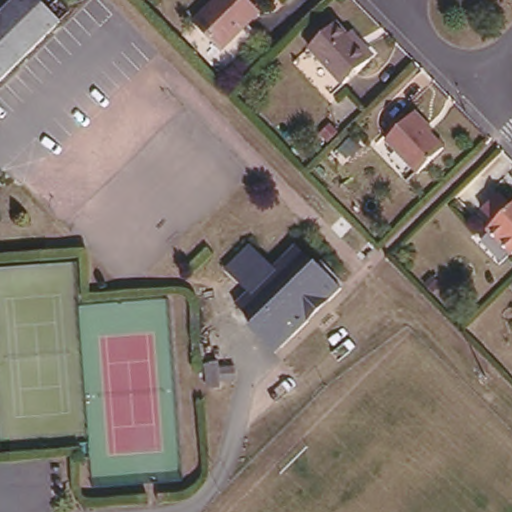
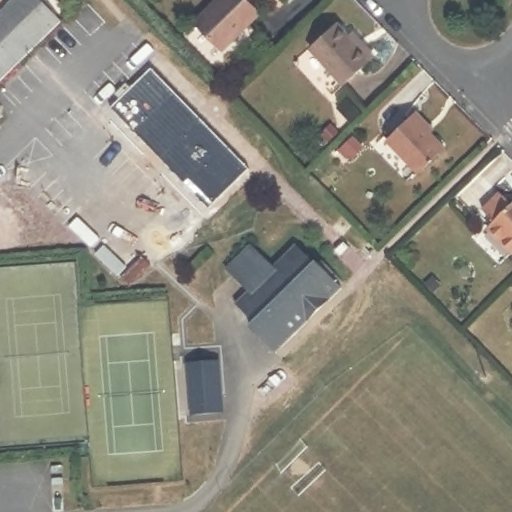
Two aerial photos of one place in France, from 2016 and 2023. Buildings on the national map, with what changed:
unchanged [(6,0),(38,0),(55,19),(31,44),(6,69),(0,75),(0,5),(6,0)]
unchanged [(253,0),(264,11),(227,49),(199,20),(221,0),(253,0)]
unchanged [(348,40),(352,36),(374,59),(369,64),(344,88),(310,50),(336,26),(348,40)]
new [(209,208),(114,108),(152,70),(247,169),(209,208)]
unchanged [(415,110),(433,129),(430,132),(444,147),(419,171),(386,138),(411,114),(415,110)]
unchanged [(512,198),(512,246),(492,227),(498,220),(486,207),(505,190),(512,198)]
unchanged [(248,319),(253,314),(235,297),(244,288),(226,270),(252,248),(268,264),(296,236),(314,254),(316,253),(318,255),(321,252),(344,276),(342,279),(329,290),(311,309),(298,322),(275,346),(265,335),(248,319)]
new [(224,361),(227,419),(187,422),(184,362),(224,361)]
demolished [(218,367),(219,372),(235,370),(236,374),(237,382),(221,383),(222,390),(209,392),(206,369),(218,367)]

